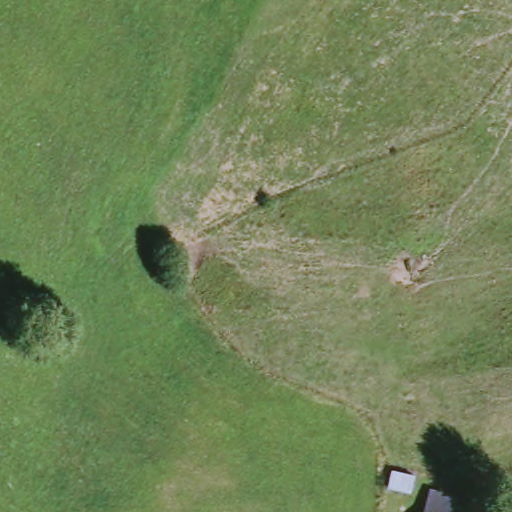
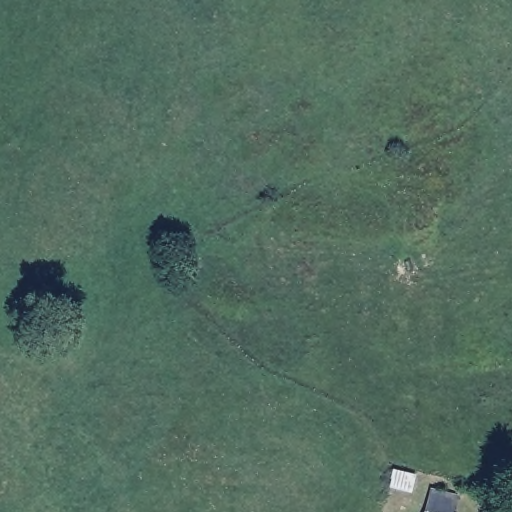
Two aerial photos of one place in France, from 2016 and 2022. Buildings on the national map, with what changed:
unchanged [(464,493),(458,512),(427,512),(436,486),(464,493)]

